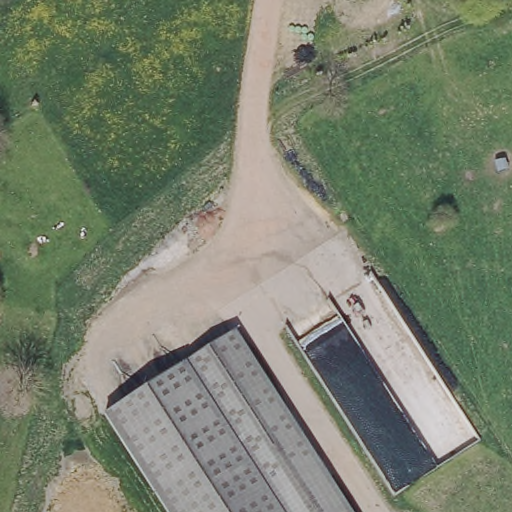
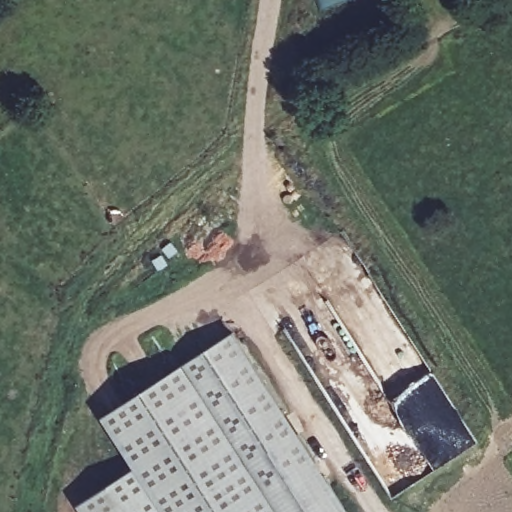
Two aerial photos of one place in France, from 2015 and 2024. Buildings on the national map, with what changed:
unchanged [(238,333),(355,512),(173,512),(111,416),(238,333)]
new [(173,512),(83,512),(79,506),(143,466),(173,512)]

